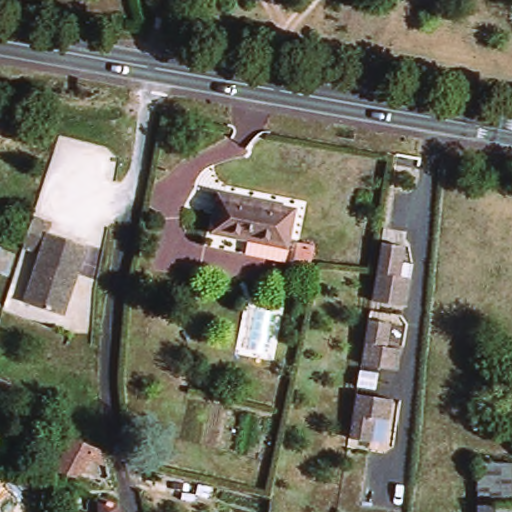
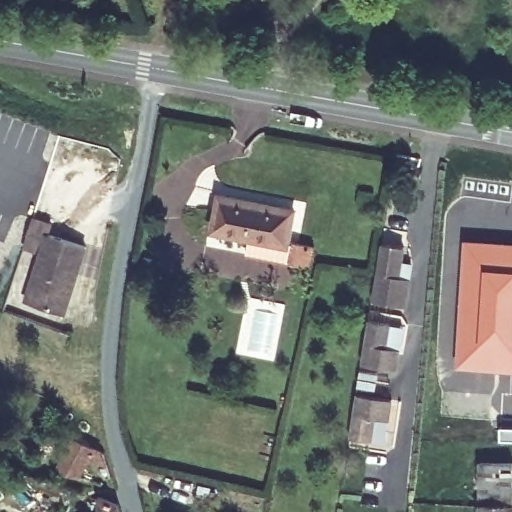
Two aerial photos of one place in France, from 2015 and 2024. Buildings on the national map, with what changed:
demolished [(44,140),(33,135),(35,130),(46,135),(44,140)]
unchanged [(287,252),(212,237),(220,200),(295,214),(287,252)]
unchanged [(62,315),(25,303),(42,253),(24,247),(33,218),(52,224),(48,234),(85,247),(62,315)]
unchanged [(400,267),(411,269),(405,306),(372,300),(380,249),(383,233),(405,237),(400,267)]
new [(512,241),(512,374),(453,369),(462,238),(512,241)]
unchanged [(309,272),(293,268),(297,249),(313,252),(309,272)]
demolished [(9,275),(0,272),(0,257),(2,250),(15,256),(12,264),(13,264),(9,275)]
unchanged [(391,347),(405,349),(402,370),(367,364),(374,320),(395,324),(391,347)]
unchanged [(381,389),(363,387),(365,372),(383,374),(381,389)]
unchanged [(395,419),(380,418),(376,442),(355,439),(362,394),(397,400),(395,419)]
unchanged [(56,472),(73,439),(95,449),(100,451),(105,453),(109,468),(90,457),(77,479),(56,472)]
unchanged [(512,468),(512,511),(478,511),(478,468),(512,468)]
unchanged [(87,502),(98,501),(98,497),(118,506),(120,512),(88,512),(87,502)]
unchanged [(478,511),(512,511),(512,512),(478,512),(478,511)]

